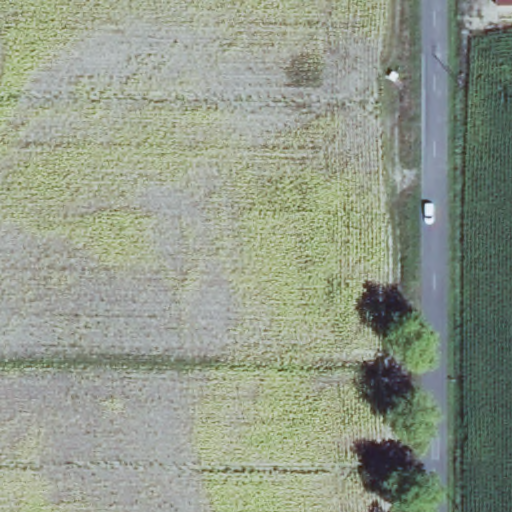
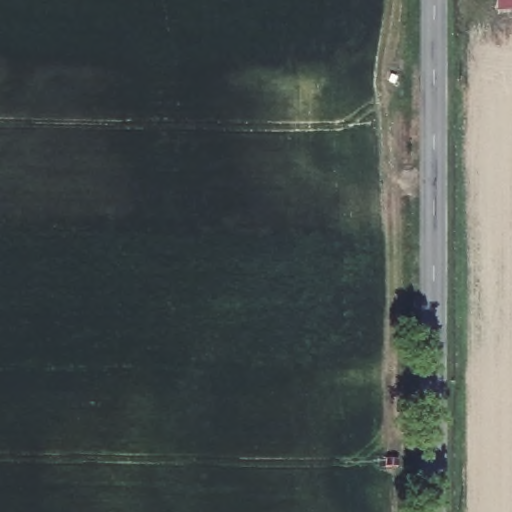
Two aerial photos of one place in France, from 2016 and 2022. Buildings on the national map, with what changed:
unchanged [(495,7),(495,0),(512,0),(512,8),(495,7)]

